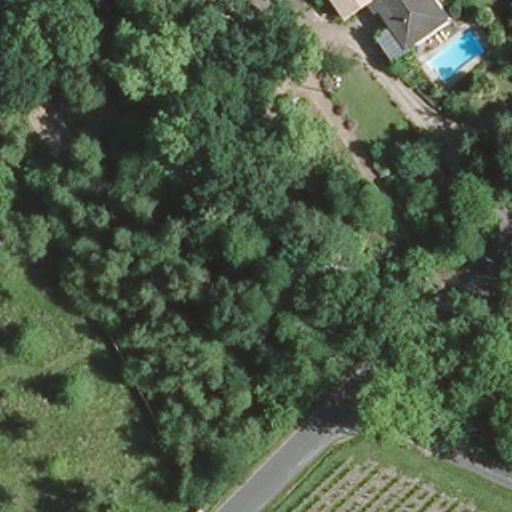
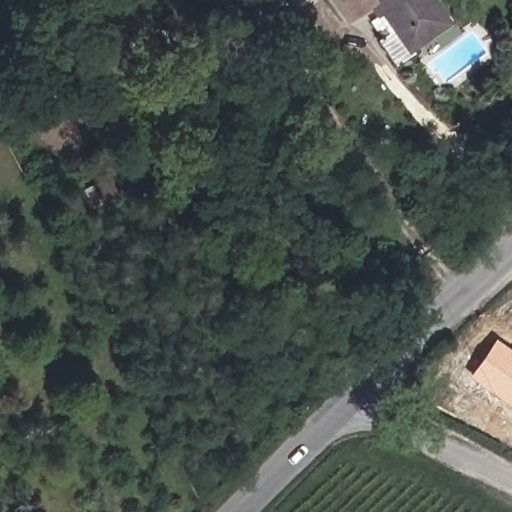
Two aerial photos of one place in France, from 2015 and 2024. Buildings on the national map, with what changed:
unchanged [(347,11),(339,0),(362,0),(347,11)]
unchanged [(392,57),(382,45),(383,44),(374,33),(387,23),(371,0),(439,0),(449,14),(392,57)]
unchanged [(176,32),(165,12),(177,5),(189,25),(176,32)]
unchanged [(56,64),(49,50),(99,24),(106,39),(56,64)]
unchanged [(4,72),(0,65),(0,55),(17,46),(25,61),(4,72)]
new [(494,338),(512,351),(512,407),(467,375),(494,338)]

